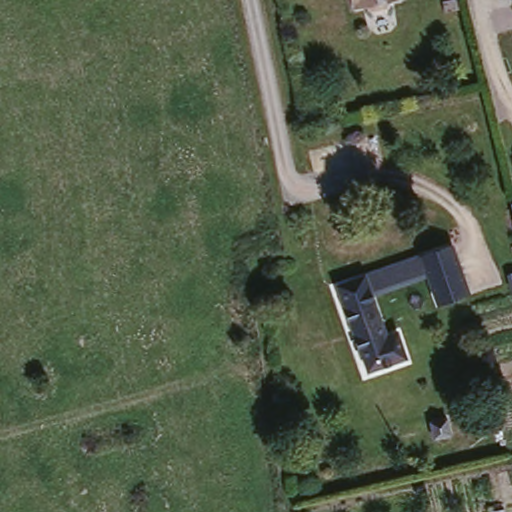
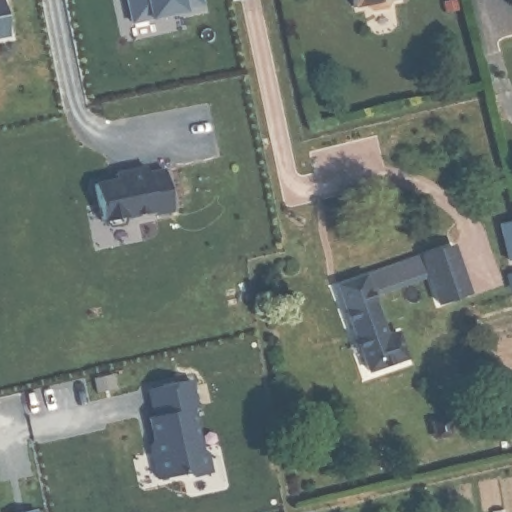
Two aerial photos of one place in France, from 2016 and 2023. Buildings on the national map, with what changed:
new [(7,33),(0,35),(0,0),(2,0),(7,33)]
new [(127,0),(202,0),(203,6),(132,22),(127,0)]
unchanged [(392,8),(371,13),(368,3),(357,3),(357,0),(391,0),(392,8)]
new [(167,165),(174,208),(107,223),(96,179),(167,165)]
unchanged [(500,222),(512,218),(512,259),(509,259),(500,222)]
unchanged [(444,307),(437,279),(390,297),(381,269),(454,240),(469,297),(444,307)]
unchanged [(362,282),(381,343),(390,342),(398,365),(363,376),(336,290),(362,282)]
new [(193,404),(188,406),(199,446),(205,449),(210,470),(188,475),(183,471),(157,478),(151,452),(156,450),(148,416),(153,415),(147,388),(187,378),(193,404)]
new [(41,512),(11,512),(40,506),(41,512)]

